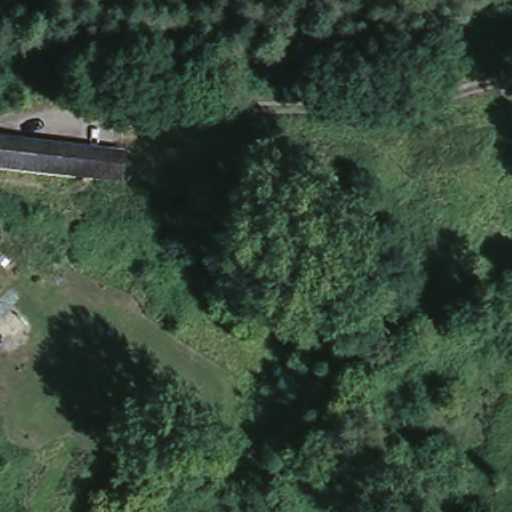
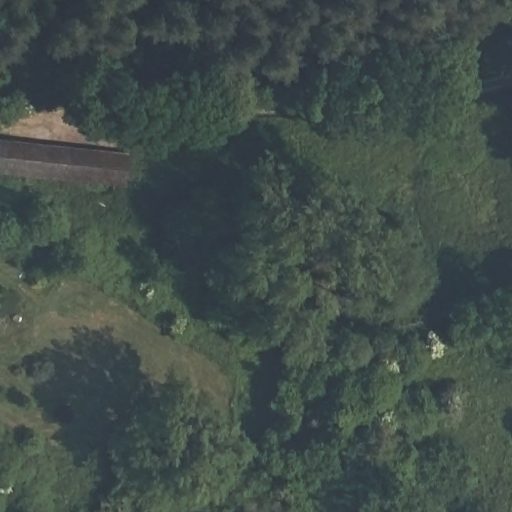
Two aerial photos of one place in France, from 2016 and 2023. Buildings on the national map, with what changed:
unchanged [(0,139),(117,151),(115,187),(0,173),(0,139)]

